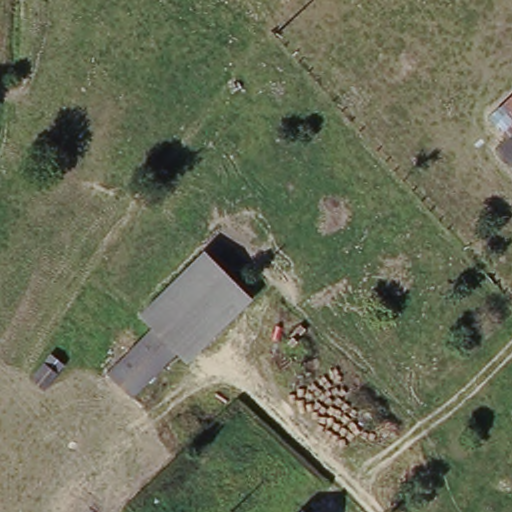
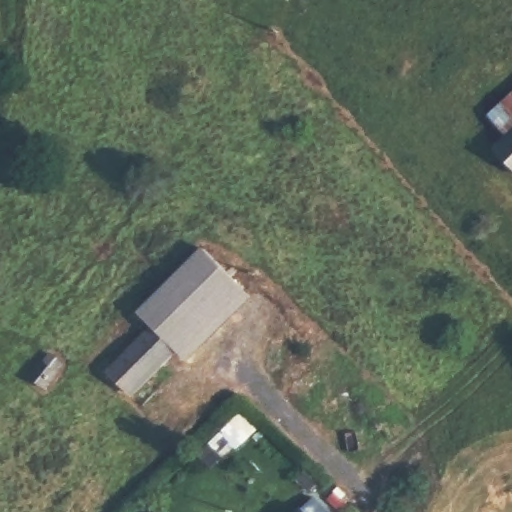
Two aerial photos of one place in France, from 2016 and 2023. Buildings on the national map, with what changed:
unchanged [(512,100),(512,131),(497,113),(512,100)]
unchanged [(512,138),(512,157),(502,147),(512,138)]
unchanged [(257,296),(189,365),(180,356),(134,402),(104,373),(152,325),(139,312),(205,245),(257,296)]
unchanged [(47,366),(58,378),(45,388),(36,377),(47,366)]
unchanged [(313,512),(294,512),(303,503),(313,512)]

